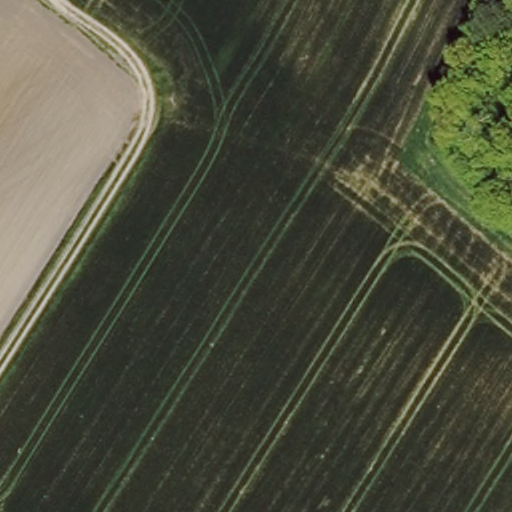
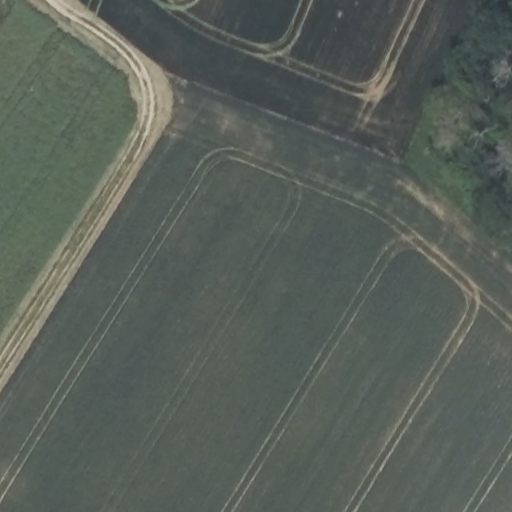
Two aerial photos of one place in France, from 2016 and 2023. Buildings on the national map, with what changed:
[]

